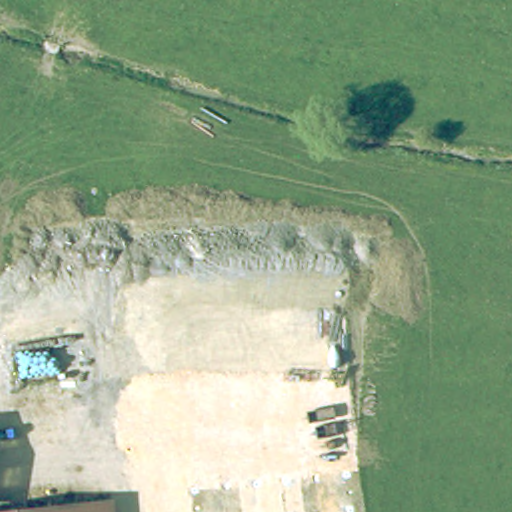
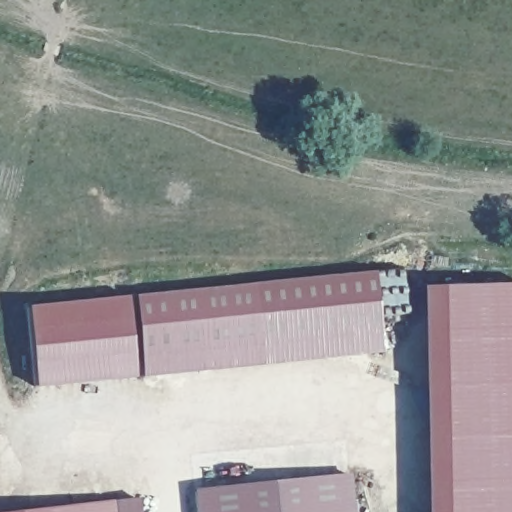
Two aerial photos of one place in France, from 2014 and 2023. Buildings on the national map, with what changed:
new [(371,270),(380,351),(140,376),(132,295),(371,270)]
new [(426,512),(417,286),(512,283),(512,512),(426,512)]
new [(194,512),(192,488),(349,472),(353,512),(194,512)]
unchanged [(0,512),(0,506),(111,493),(113,512),(0,512)]
new [(138,496),(140,512),(113,512),(112,498),(138,496)]

